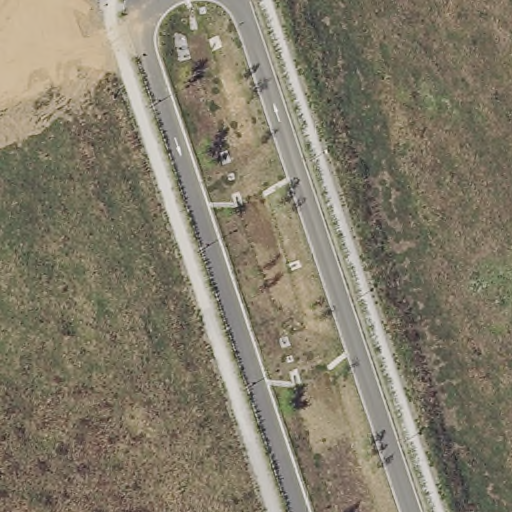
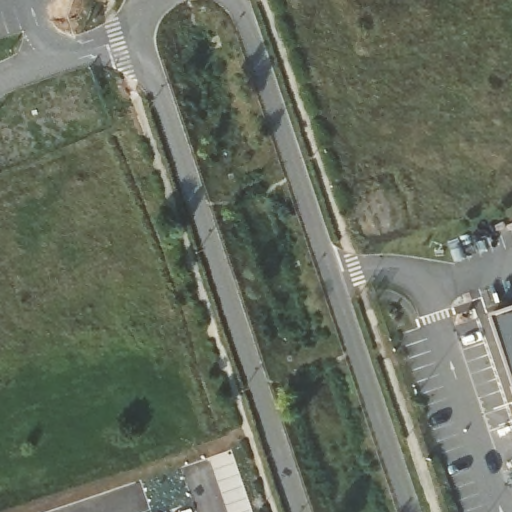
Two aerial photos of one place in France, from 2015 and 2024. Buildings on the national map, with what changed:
new [(491,320),(512,313),(512,386),(491,320)]

